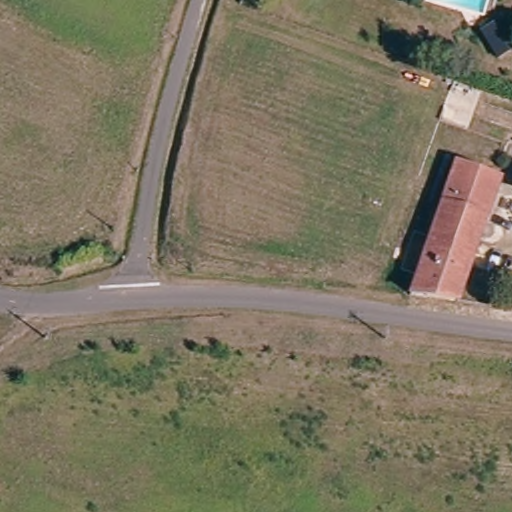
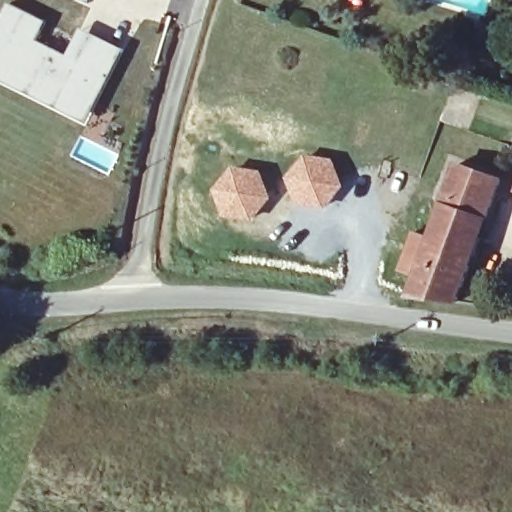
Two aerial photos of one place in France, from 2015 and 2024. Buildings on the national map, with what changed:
new [(32,27),(43,32),(38,42),(69,57),(82,31),(93,36),(124,52),(98,105),(80,96),(73,110),(34,91),(38,83),(0,64),(0,29),(12,5),(36,18),(32,27)]
unchanged [(507,59),(495,40),(489,31),(508,19),(512,26),(512,56),(507,59)]
new [(303,151),(334,156),(346,186),(324,209),(294,202),(284,179),(303,151)]
unchanged [(459,163),(503,178),(459,303),(415,287),(459,163)]
new [(234,164),(262,168),(274,198),(254,220),(235,221),(229,218),(220,207),(217,189),(234,164)]
new [(413,230),(429,235),(414,277),(399,271),(413,230)]

